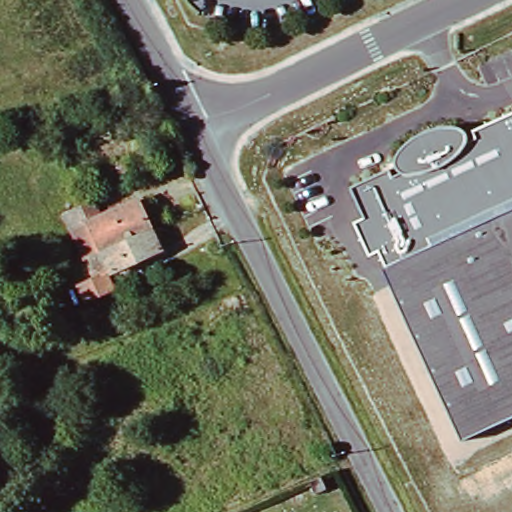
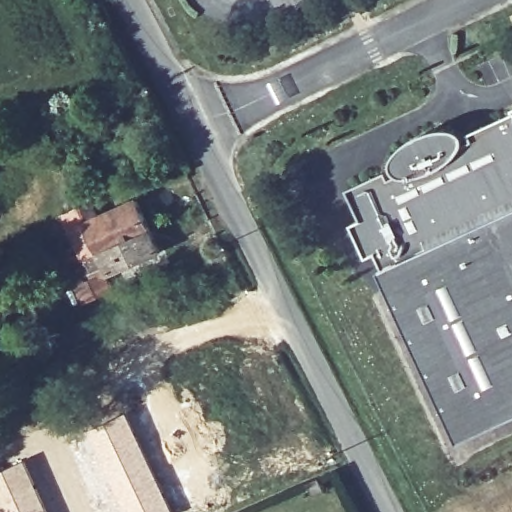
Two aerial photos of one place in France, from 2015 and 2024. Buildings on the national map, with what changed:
unchanged [(461,442),(381,268),(379,257),(371,261),(356,227),(368,220),(354,193),(386,177),(396,168),(398,155),(409,143),(435,133),(453,132),(468,136),(476,134),(512,120),(512,419),(461,442)]
unchanged [(164,252),(110,277),(115,288),(84,300),(79,288),(98,279),(94,269),(87,272),(64,219),(95,207),(100,215),(141,200),(164,252)]
new [(175,512),(126,512),(87,428),(126,410),(175,512)]
new [(126,512),(98,512),(68,438),(87,428),(126,512)]
new [(51,512),(1,512),(0,511),(0,470),(25,457),(51,512)]
unchanged [(330,473),(337,488),(321,493),(317,477),(330,473)]

